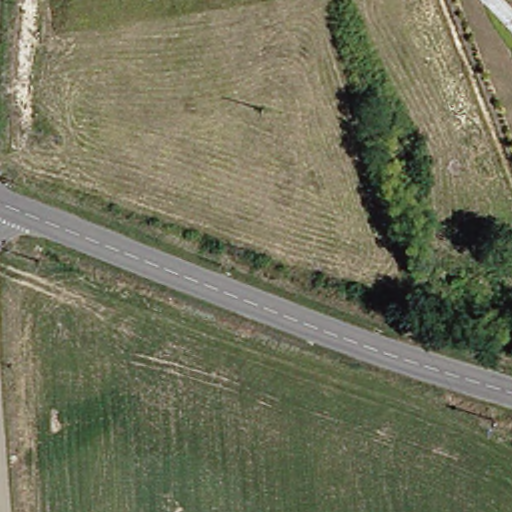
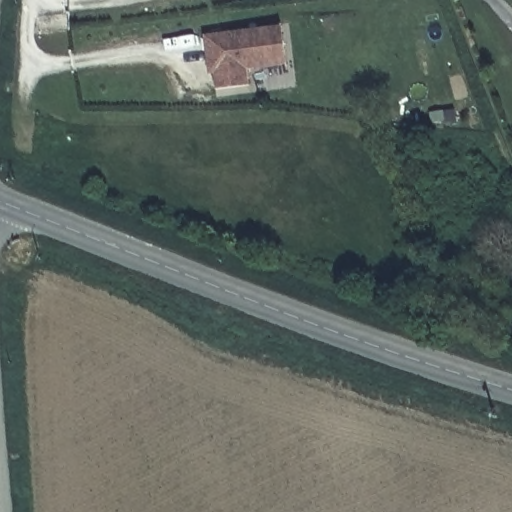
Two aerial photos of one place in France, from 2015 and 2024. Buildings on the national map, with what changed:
new [(286,66),(247,70),(248,87),(214,90),(213,74),(207,75),(203,35),(282,25),(286,66)]

